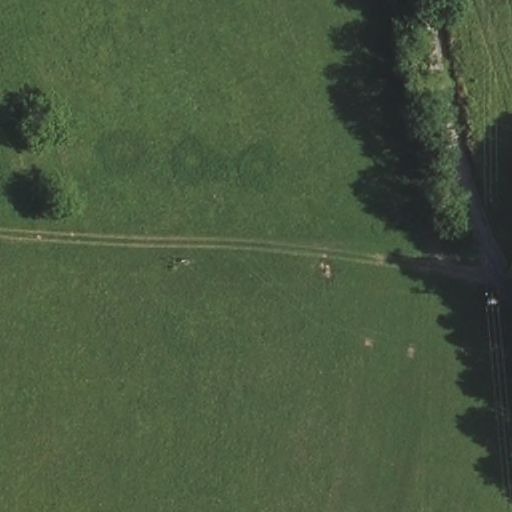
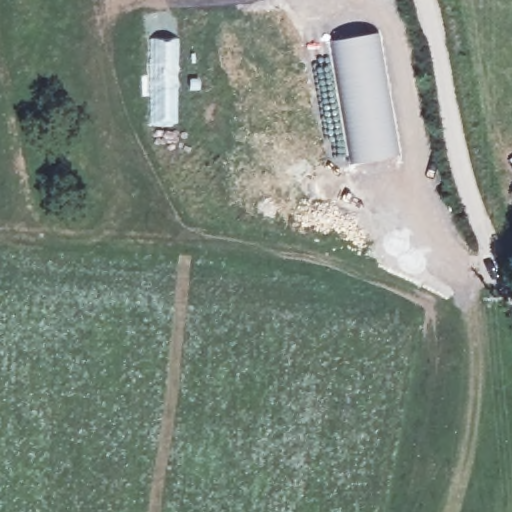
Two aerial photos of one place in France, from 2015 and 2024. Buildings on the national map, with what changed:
new [(380,29),(402,156),(345,164),(343,152),(335,92),(326,39),(380,29)]

